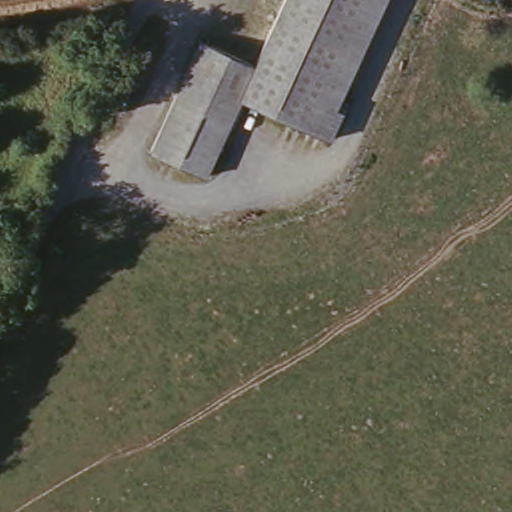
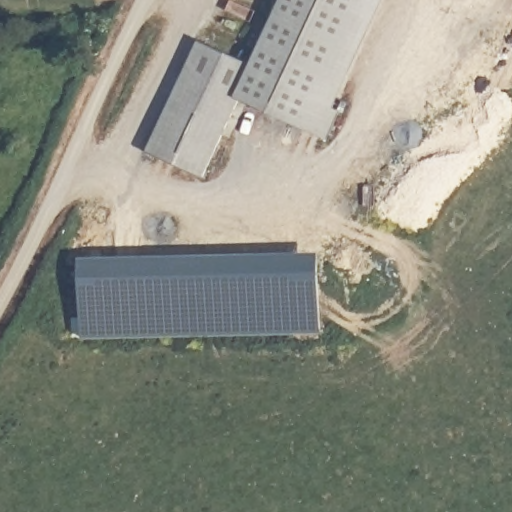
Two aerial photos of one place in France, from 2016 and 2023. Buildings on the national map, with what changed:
unchanged [(254,66),(284,0),(385,0),(335,109),(341,112),(329,137),(240,97),(205,175),(150,150),(200,41),(254,66)]
new [(318,303),(318,311),(322,311),(322,333),(84,338),(82,258),(322,252),(323,303),(318,303)]

